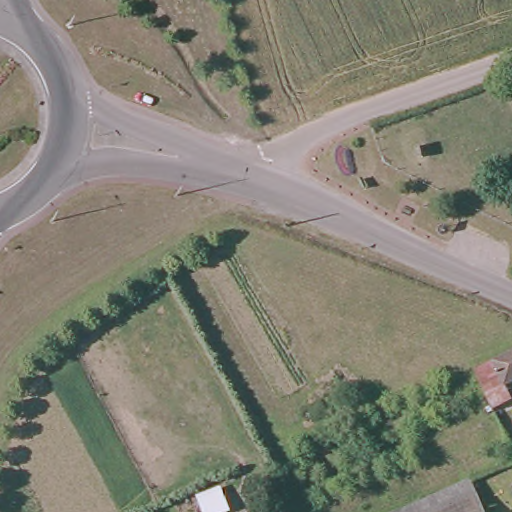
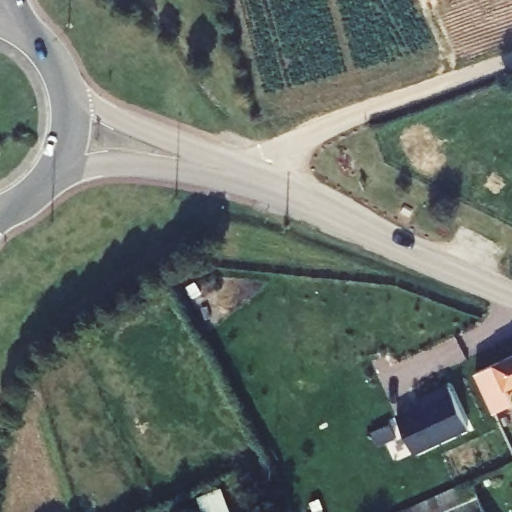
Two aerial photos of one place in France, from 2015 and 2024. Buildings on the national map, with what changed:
unchanged [(512,353),(512,408),(499,414),(477,370),(512,353)]
new [(421,406),(418,400),(445,387),(465,429),(412,454),(395,418),(421,406)]
unchanged [(486,512),(408,512),(473,482),(486,512)]

